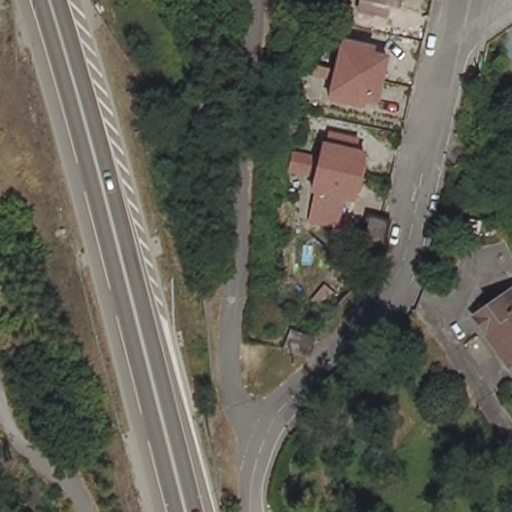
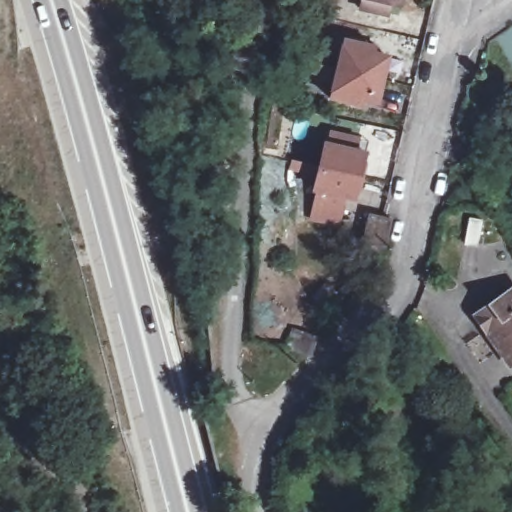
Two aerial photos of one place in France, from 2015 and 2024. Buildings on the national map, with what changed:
unchanged [(388,13),(362,6),(363,0),(391,0),(388,13)]
unchanged [(401,2),(393,0),(401,0),(401,2)]
unchanged [(313,50),(343,57),(348,37),(375,44),(375,50),(388,53),(378,97),(365,95),(363,101),(334,95),(338,75),(308,68),(313,50)]
unchanged [(297,148),(323,154),(325,140),(331,142),(335,127),(359,134),(356,147),(366,149),(365,156),(368,160),(362,185),(357,187),(356,194),(346,192),(340,220),(315,215),(321,187),(315,186),(319,170),(292,165),(297,148)]
unchanged [(371,217),(386,220),(392,221),(385,250),(365,245),(371,217)]
unchanged [(483,225),(479,250),(467,247),(471,222),(483,225)]
unchanged [(512,292),(512,362),(507,366),(473,315),(510,290),(512,292)]
unchanged [(316,349),(313,358),(307,356),(288,350),(294,333),(318,340),(316,349)]

